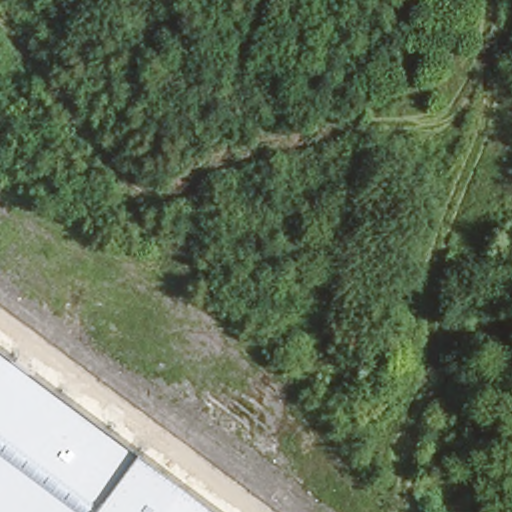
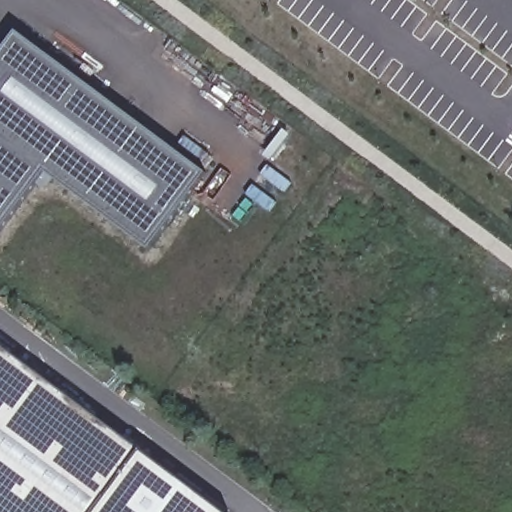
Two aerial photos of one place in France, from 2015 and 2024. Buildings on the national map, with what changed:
new [(148,247),(41,169),(0,228),(0,53),(16,32),(202,172),(148,247)]
unchanged [(0,512),(0,348),(222,512),(0,512)]

